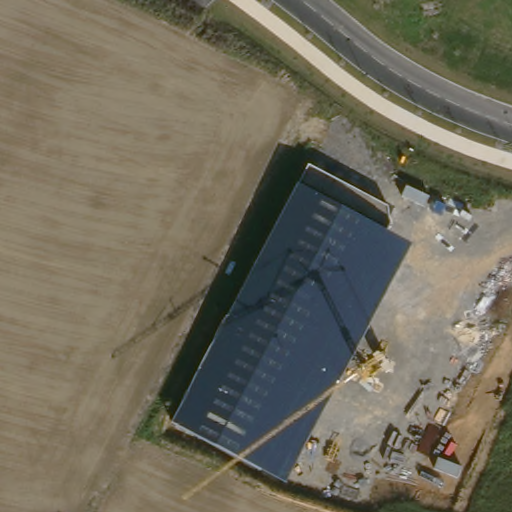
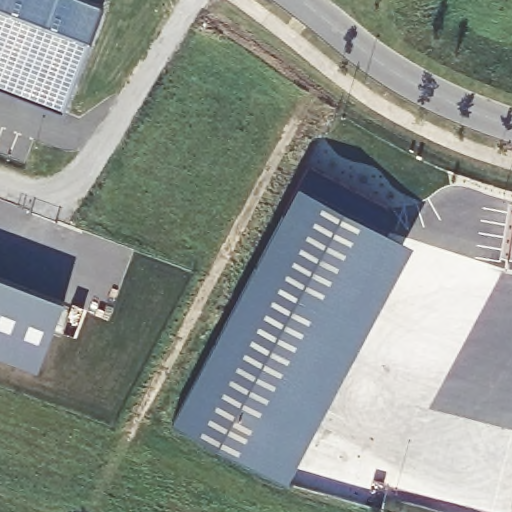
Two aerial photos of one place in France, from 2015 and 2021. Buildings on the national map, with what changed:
new [(64,109),(0,85),(0,0),(92,0),(103,4),(64,109)]
unchanged [(173,423),(298,185),(308,166),(387,206),(391,223),(386,231),(412,244),(285,482),(173,423)]
new [(38,373),(0,359),(0,279),(65,303),(38,373)]

